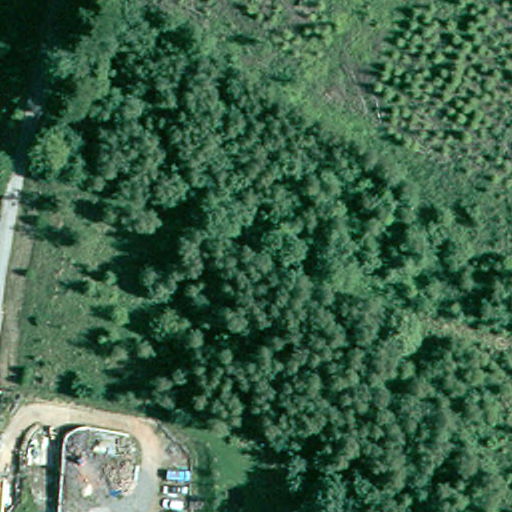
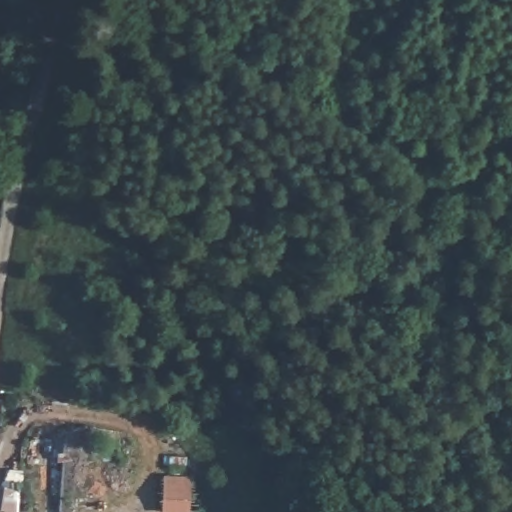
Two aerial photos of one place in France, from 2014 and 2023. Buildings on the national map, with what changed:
new [(165,473),(193,476),(192,512),(164,511),(165,473)]

